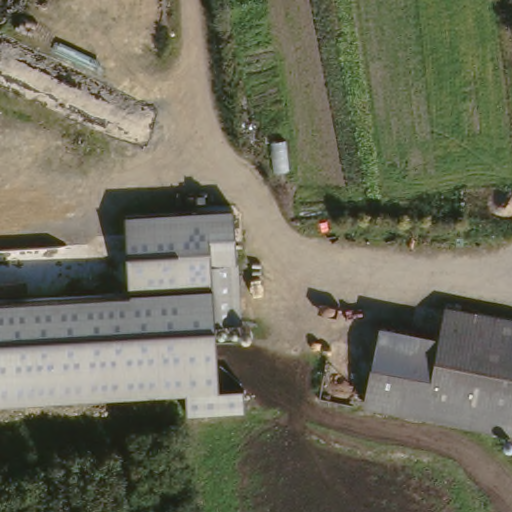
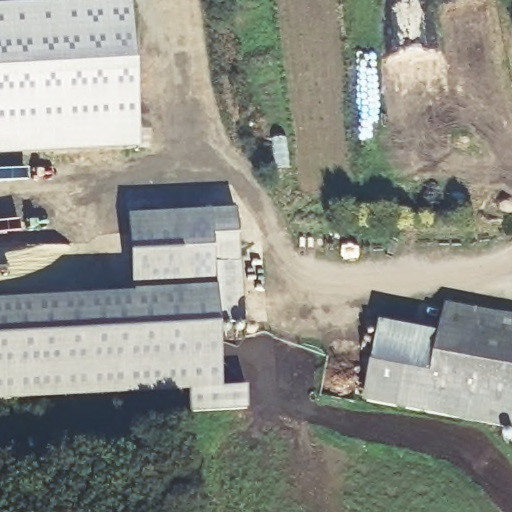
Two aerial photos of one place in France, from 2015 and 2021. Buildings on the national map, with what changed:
new [(120,0),(129,0),(136,146),(0,156),(0,7),(120,0)]
unchanged [(242,323),(214,324),(220,389),(244,389),(245,408),(189,411),(187,392),(0,400),(0,301),(130,292),(125,215),(233,208),(242,323)]
unchanged [(451,303),(512,315),(512,389),(436,374),(445,332),(451,303)]
unchanged [(386,320),(445,332),(436,374),(378,362),(386,320)]
unchanged [(370,399),(378,362),(436,374),(512,389),(512,426),(405,406),(370,399)]

